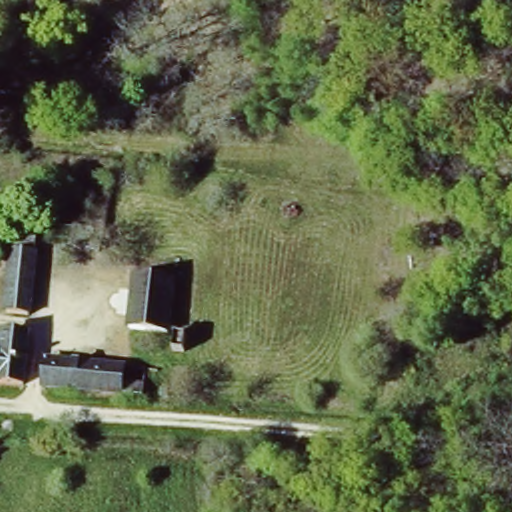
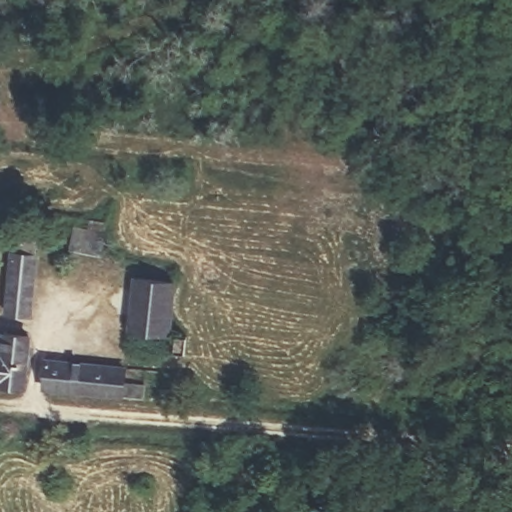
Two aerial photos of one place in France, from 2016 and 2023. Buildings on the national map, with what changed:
unchanged [(100,226),(97,239),(72,235),(75,221),(100,226)]
unchanged [(14,249),(38,249),(32,310),(6,307),(14,249)]
unchanged [(129,329),(130,275),(172,276),(167,332),(129,329)]
unchanged [(0,380),(0,334),(30,336),(29,384),(0,380)]
unchanged [(48,355),(142,358),(137,398),(46,389),(48,355)]

